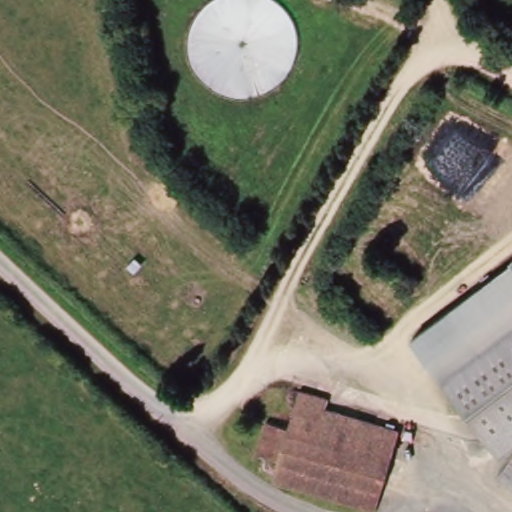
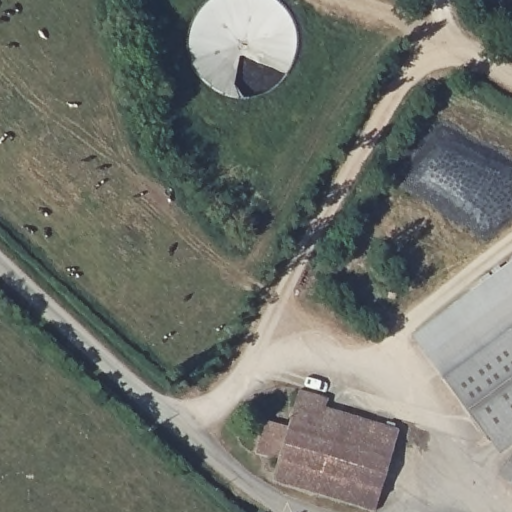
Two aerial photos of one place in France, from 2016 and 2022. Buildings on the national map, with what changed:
unchanged [(408,337),(512,258),(512,367),(460,406),(459,407),(408,337)]
unchanged [(512,367),(512,442),(495,454),(460,406),(512,367)]
unchanged [(371,511),(268,480),(273,460),(252,454),(262,420),(283,426),(294,389),(324,398),(320,408),(395,431),(371,511)]
unchanged [(512,450),(512,487),(495,475),(512,450)]

